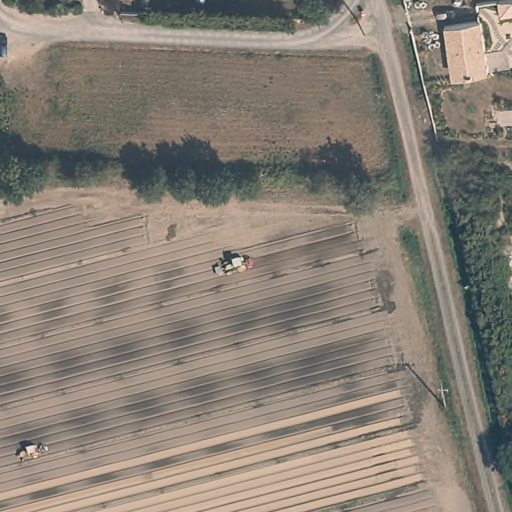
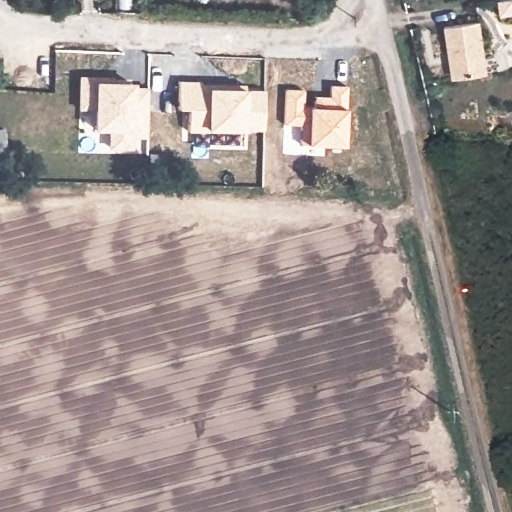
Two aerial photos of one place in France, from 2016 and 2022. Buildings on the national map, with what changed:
unchanged [(497,0),(512,0),(512,12),(501,13),(497,0)]
unchanged [(479,19),(489,73),(454,80),(443,24),(479,19)]
new [(112,130),(93,130),(93,109),(78,108),(79,75),(118,76),(119,81),(135,81),(134,86),(149,87),(148,137),(135,137),(134,149),(109,149),(112,130)]
new [(189,108),(178,108),(180,80),(229,81),(228,89),(265,90),(265,130),(210,129),(210,133),(188,132),(189,108)]

